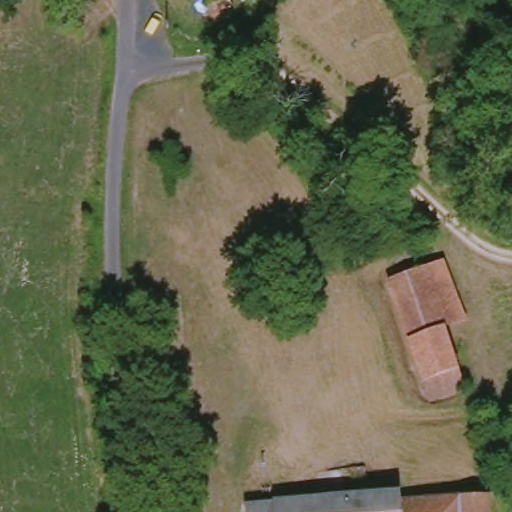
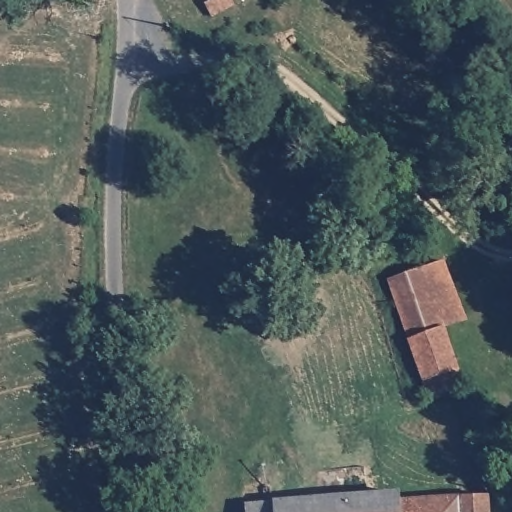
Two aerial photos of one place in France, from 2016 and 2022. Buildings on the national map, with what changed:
unchanged [(198,2),(202,0),(225,0),(227,5),(207,19),(198,2)]
unchanged [(422,384),(387,284),(448,263),(453,277),(465,318),(448,326),(463,373),(468,390),(429,402),(422,384)]
unchanged [(403,493),(403,502),(490,501),(491,512),(251,512),(251,506),(403,493)]

